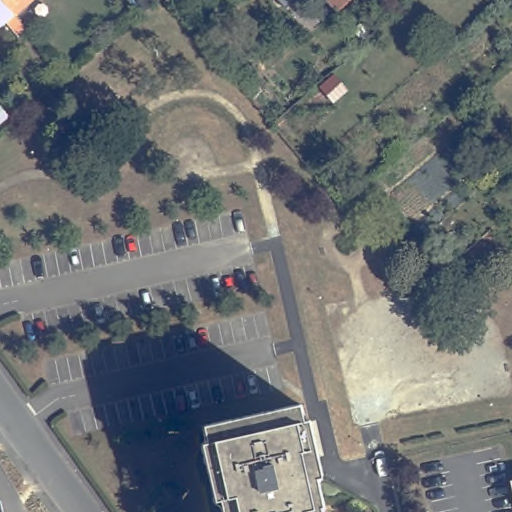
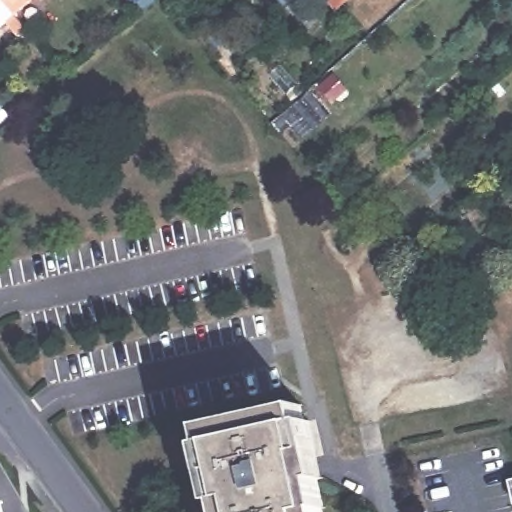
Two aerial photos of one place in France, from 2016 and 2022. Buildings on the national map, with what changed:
unchanged [(20,18),(29,29),(21,35),(10,22),(3,27),(0,24),(0,0),(5,0),(20,18)]
unchanged [(20,18),(5,0),(42,0),(20,18)]
unchanged [(168,5),(164,0),(174,0),(168,5)]
unchanged [(352,4),(343,11),(334,0),(356,0),(352,4)]
unchanged [(332,482),(327,484),(333,511),(331,512),(230,512),(229,506),(224,507),(211,448),(216,446),(212,431),(310,408),(314,425),(318,425),(332,482)]
unchanged [(4,512),(0,512),(0,504),(2,503),(4,512)]

